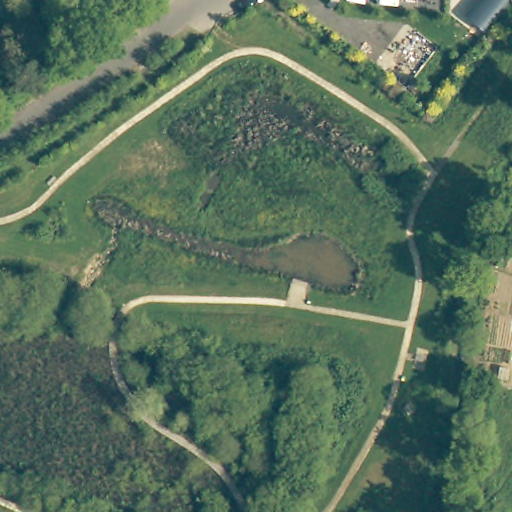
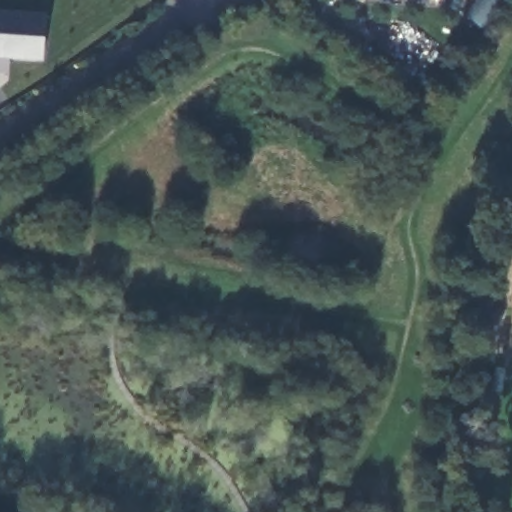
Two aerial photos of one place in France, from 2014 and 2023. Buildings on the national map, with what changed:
new [(476,0),(503,0),(483,27),(466,13),(476,0)]
new [(41,61),(0,59),(0,10),(44,13),(41,61)]

